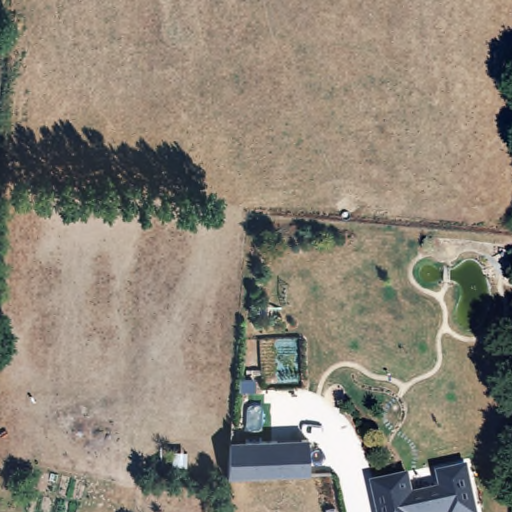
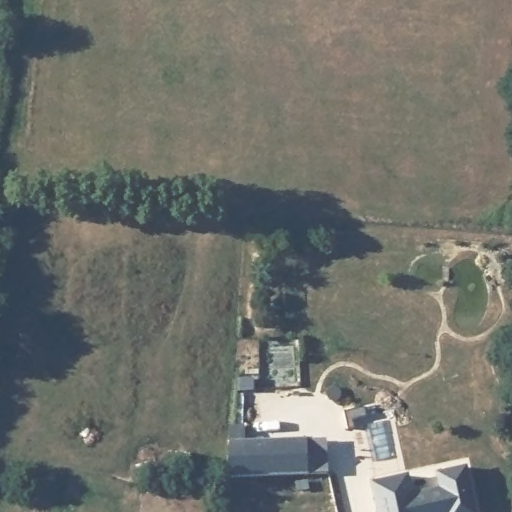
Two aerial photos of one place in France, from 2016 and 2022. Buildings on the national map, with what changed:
unchanged [(231,449),(231,447),(232,441),(246,440),(307,436),(308,453),(308,457),(309,472),(249,476),(228,477),(231,449)]
unchanged [(409,484),(437,480),(436,471),(467,465),(476,512),(376,512),(371,484),(409,475),(409,484)]

